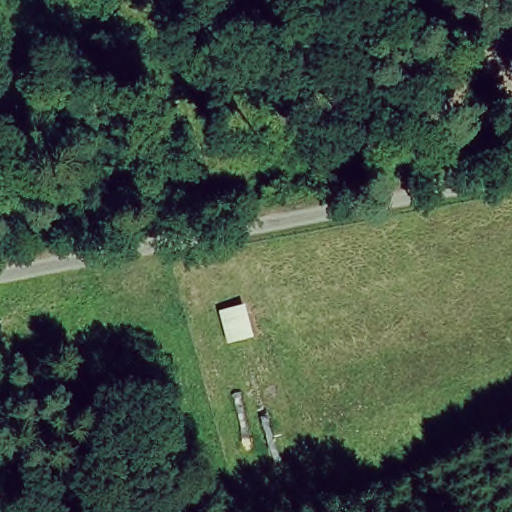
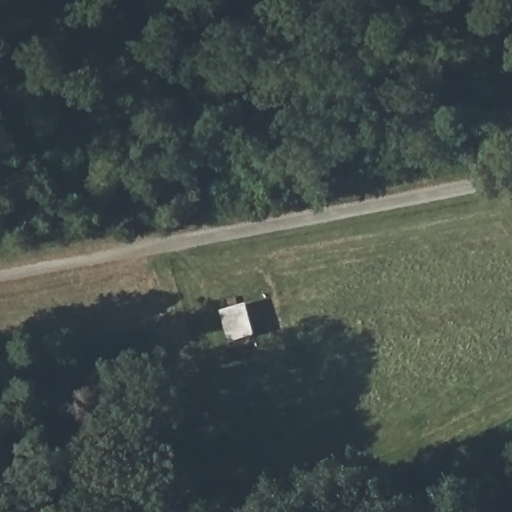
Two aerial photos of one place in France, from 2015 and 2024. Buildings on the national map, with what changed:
unchanged [(227,347),(219,310),(245,304),(257,342),(227,347)]

